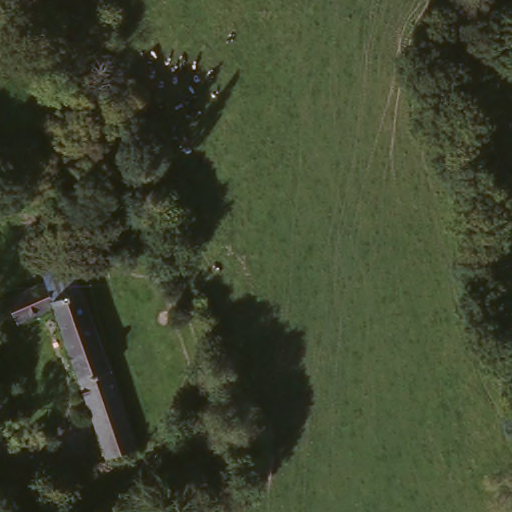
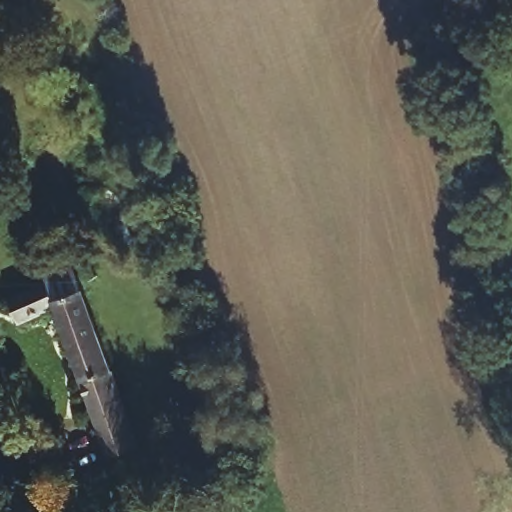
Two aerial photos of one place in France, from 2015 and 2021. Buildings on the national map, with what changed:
unchanged [(101,465),(49,315),(46,306),(40,288),(36,279),(66,268),(76,296),(133,453),(101,465)]
unchanged [(13,331),(3,305),(40,288),(46,306),(49,315),(13,331)]

